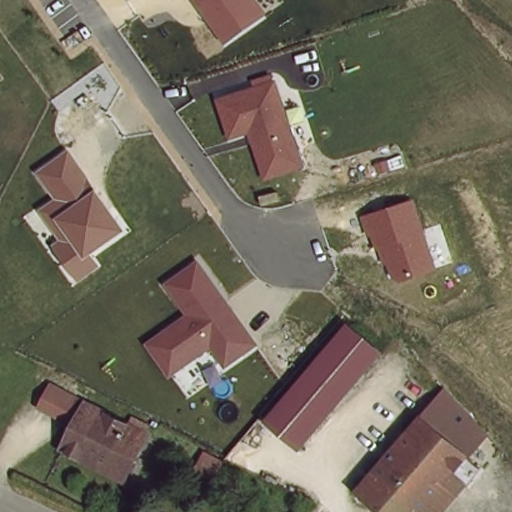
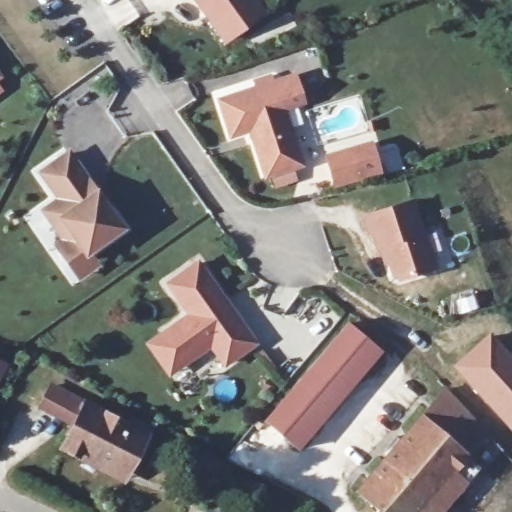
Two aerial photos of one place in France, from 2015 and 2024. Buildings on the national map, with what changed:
unchanged [(227,41),(198,0),(258,0),(267,13),(227,41)]
unchanged [(252,86),(252,81),(275,74),(304,167),(262,180),(247,132),(227,138),(215,97),(252,86)]
unchanged [(1,80),(0,80),(0,78),(1,80)]
new [(333,189),(323,155),(370,142),(380,175),(333,189)]
unchanged [(95,189),(125,230),(90,254),(98,267),(78,281),(52,244),(58,239),(38,210),(55,199),(36,172),(68,150),(95,189)]
unchanged [(437,268),(400,281),(390,277),(387,264),(384,265),(377,246),(375,246),(370,232),(365,235),(360,216),(413,199),(437,268)]
unchanged [(257,345),(225,367),(212,348),(168,378),(144,345),(186,315),(164,284),(197,260),(257,345)]
new [(471,290),(477,310),(449,316),(445,300),(471,290)]
unchanged [(386,346),(298,443),(264,412),(352,315),(386,346)]
new [(512,356),(512,432),(450,365),(488,330),(512,356)]
new [(7,365),(0,377),(0,361),(7,365)]
unchanged [(491,437),(458,472),(421,512),(379,512),(344,477),(383,433),(396,446),(445,393),(491,437)]
unchanged [(80,455),(57,443),(82,394),(148,427),(130,463),(123,476),(80,455)]
unchanged [(218,451),(212,466),(189,457),(195,442),(218,451)]
unchanged [(470,485),(445,512),(421,512),(458,472),(470,485)]

